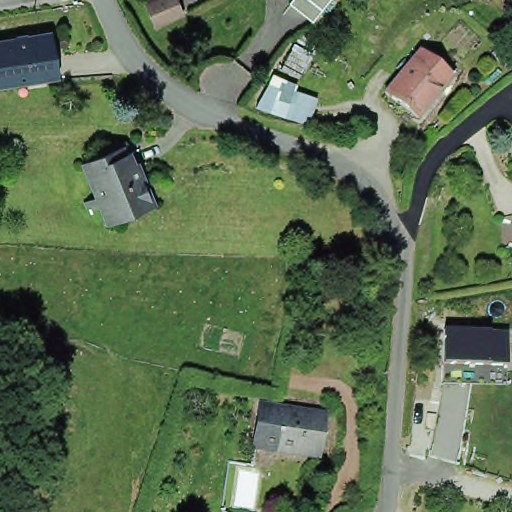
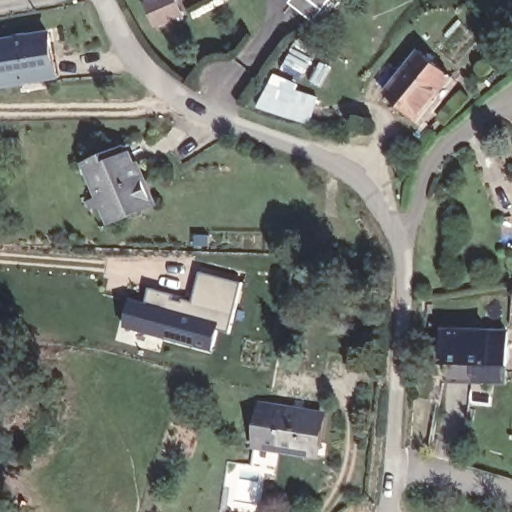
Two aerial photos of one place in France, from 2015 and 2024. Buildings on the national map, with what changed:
unchanged [(152,20),(150,17),(144,0),(176,0),(180,8),(152,20)]
unchanged [(54,69),(54,72),(0,79),(0,32),(52,26),(56,46),(63,46),(66,68),(54,69)]
unchanged [(421,121),(387,94),(420,51),(455,79),(421,121)]
unchanged [(276,74),(300,85),(297,90),(322,99),(312,126),(258,110),(276,74)]
unchanged [(94,198),(76,160),(112,144),(122,139),(125,146),(128,156),(132,154),(150,191),(152,197),(132,205),(112,214),(103,218),(94,198)]
new [(132,297),(152,301),(155,287),(200,301),(207,273),(247,283),(227,354),(127,327),(132,297)]
new [(512,296),(512,326),(510,326),(512,296)]
unchanged [(441,330),(487,331),(507,333),(507,366),(488,365),(440,364),(441,330)]
unchanged [(317,455),(252,445),(260,406),(267,407),(323,416),(317,455)]
demolished [(195,505),(214,512),(193,512),(195,505)]

